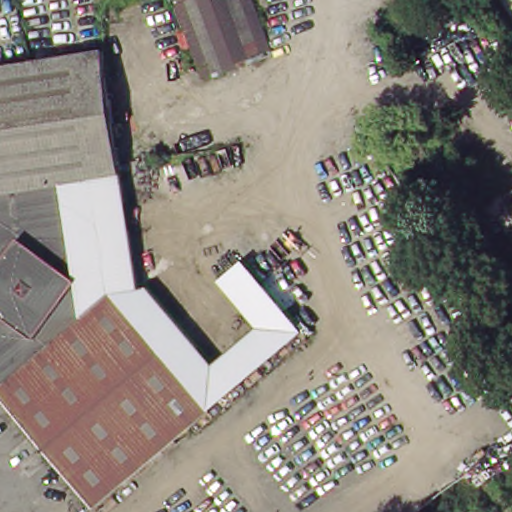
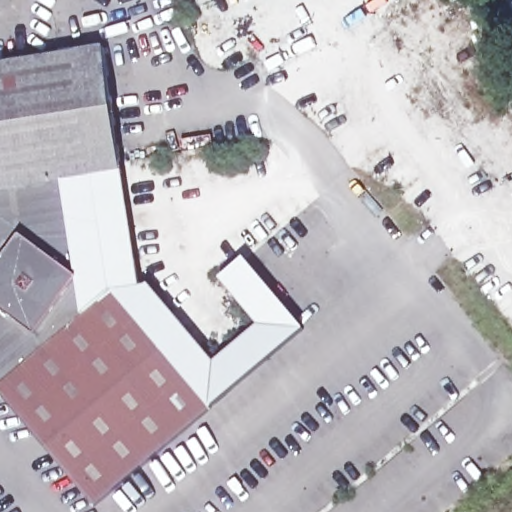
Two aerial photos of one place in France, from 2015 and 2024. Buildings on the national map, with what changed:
demolished [(207,83),(180,14),(186,11),(182,0),(252,0),(274,55),(207,83)]
unchanged [(106,51),(131,231),(138,290),(110,292),(210,407),(94,507),(51,457),(29,476),(9,452),(31,433),(0,396),(0,66),(106,51)]
unchanged [(110,292),(138,290),(149,289),(213,363),(259,325),(219,279),(243,258),(303,328),(210,407),(110,292)]

